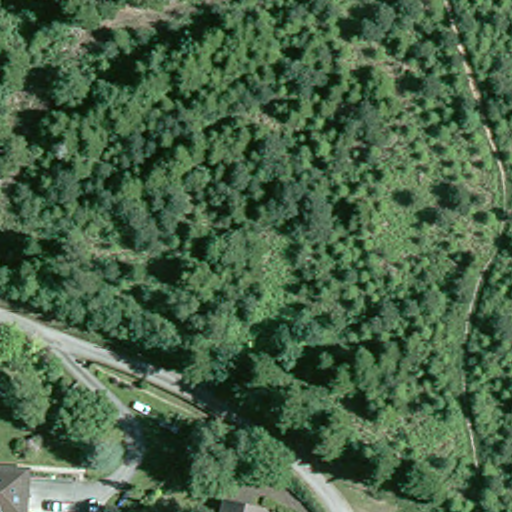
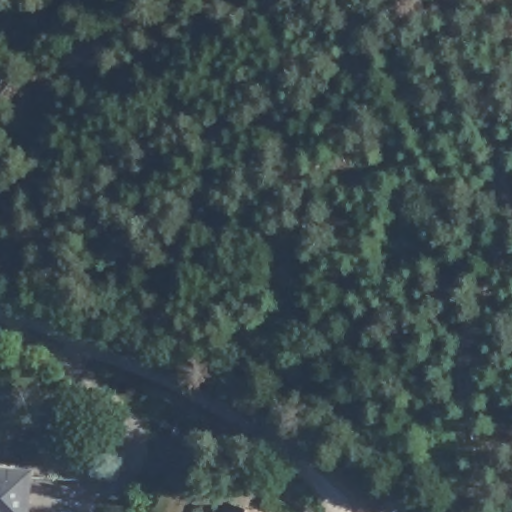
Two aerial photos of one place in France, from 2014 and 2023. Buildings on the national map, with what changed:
unchanged [(0,475),(25,476),(23,512),(0,512),(0,475)]
unchanged [(232,509),(244,512),(231,512),(232,509)]

